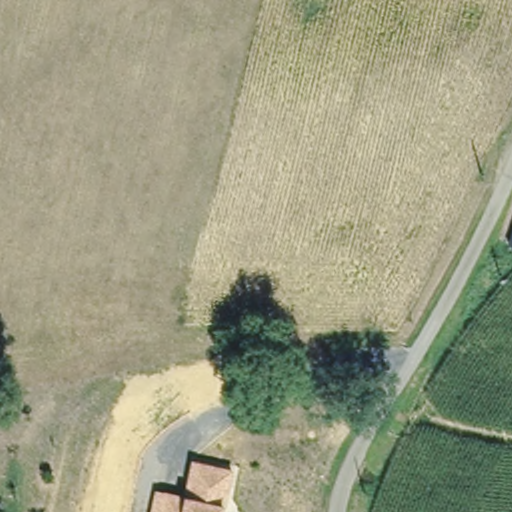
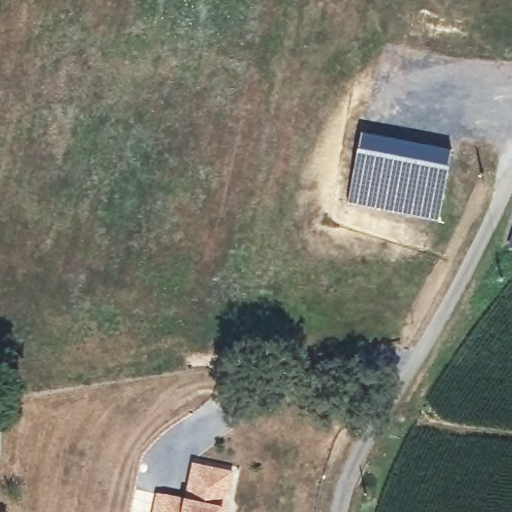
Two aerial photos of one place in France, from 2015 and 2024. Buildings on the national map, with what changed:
new [(361,131),(452,150),(440,221),(346,204),(361,131)]
unchanged [(512,230),(512,247),(507,244),(512,230)]
unchanged [(187,501),(197,466),(236,476),(226,512),(154,512),(159,494),(187,501)]

